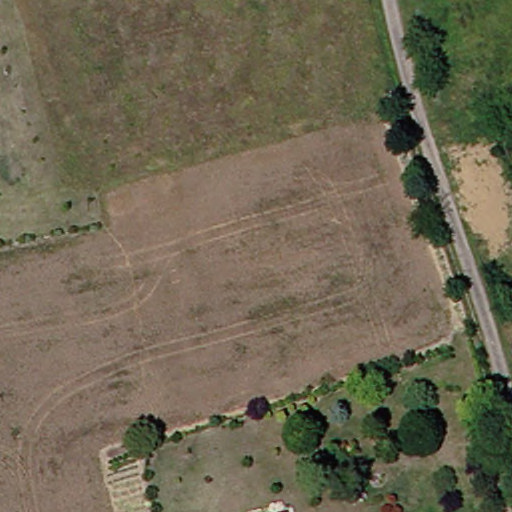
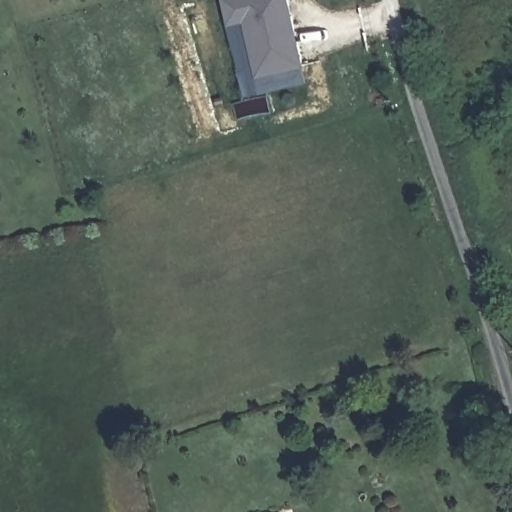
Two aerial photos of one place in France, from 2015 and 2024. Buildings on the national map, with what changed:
new [(300,70),(254,79),(242,24),(228,27),(222,1),(227,0),(285,0),(300,70)]

